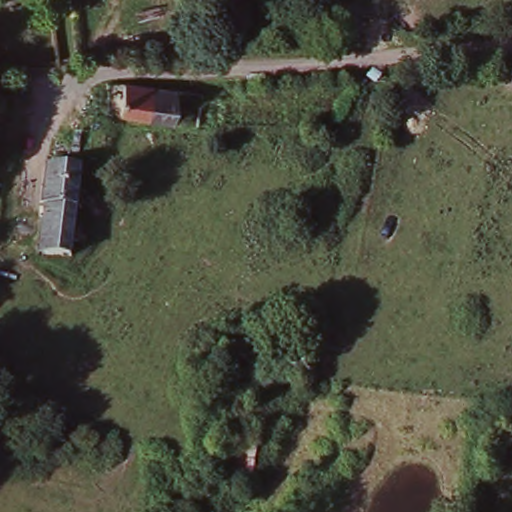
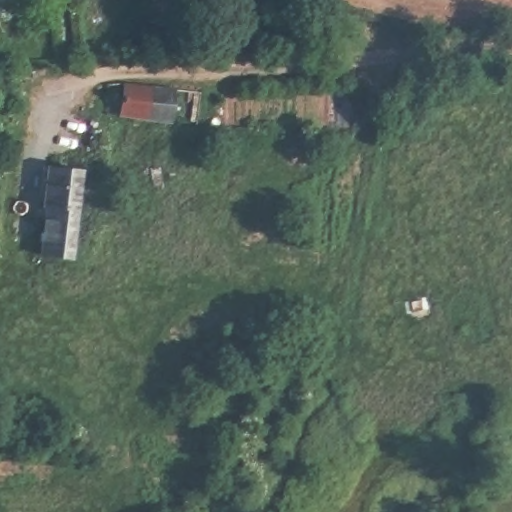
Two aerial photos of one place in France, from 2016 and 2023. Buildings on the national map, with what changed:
unchanged [(181,90),(178,122),(126,117),(130,83),(181,90)]
unchanged [(53,200),(49,199),(52,159),(87,161),(78,250),(48,247),(53,200)]
unchanged [(223,368),(224,339),(274,346),(275,331),(307,335),(305,350),(318,351),(311,378),(223,368)]
unchanged [(225,383),(268,388),(255,484),(211,477),(225,383)]
unchanged [(182,512),(166,512),(168,502),(184,505),(182,512)]

